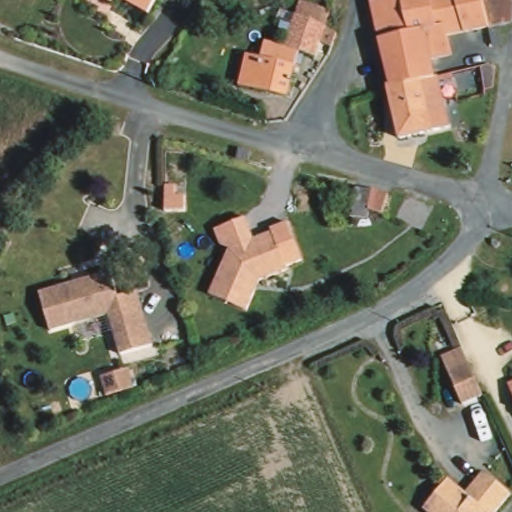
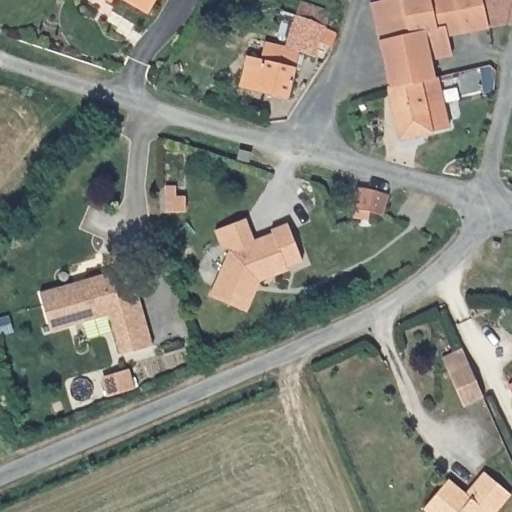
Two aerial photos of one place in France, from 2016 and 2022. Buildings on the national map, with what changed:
unchanged [(113,0),(122,0),(120,4),(113,0)]
unchanged [(140,5),(132,0),(142,0),(140,5)]
unchanged [(155,14),(140,5),(142,0),(162,0),(155,14)]
unchanged [(338,29),(335,44),(323,40),(319,55),(291,47),(300,14),(305,0),(310,0),(333,7),(330,22),(328,27),(338,29)]
unchanged [(375,0),(408,0),(415,30),(423,28),(430,58),(434,75),(392,86),(373,1),(375,0)]
unchanged [(512,19),(505,21),(489,25),(446,35),(450,54),(430,58),(423,28),(415,30),(408,0),(512,0),(512,19)]
unchanged [(297,70),(290,98),(245,88),(251,59),(297,70)]
unchanged [(434,75),(437,75),(450,122),(440,124),(432,126),(403,134),(395,99),(392,86),(434,75)]
unchanged [(380,198),(411,205),(411,206),(410,218),(395,215),(392,231),(380,229),(377,229),(380,198)]
unchanged [(219,260),(208,234),(241,221),(248,240),(267,235),(280,277),(257,283),(244,313),(202,298),(219,260)]
unchanged [(129,271),(149,346),(112,358),(104,321),(45,334),(33,294),(129,271)]
unchanged [(464,365),(477,394),(455,406),(442,375),(464,365)]
unchanged [(512,392),(508,385),(512,383),(512,392)]
unchanged [(496,512),(495,511),(493,512),(434,512),(427,506),(450,479),(452,478),(468,490),(487,469),(498,478),(512,489),(512,494),(508,499),(497,512),(496,512)]

